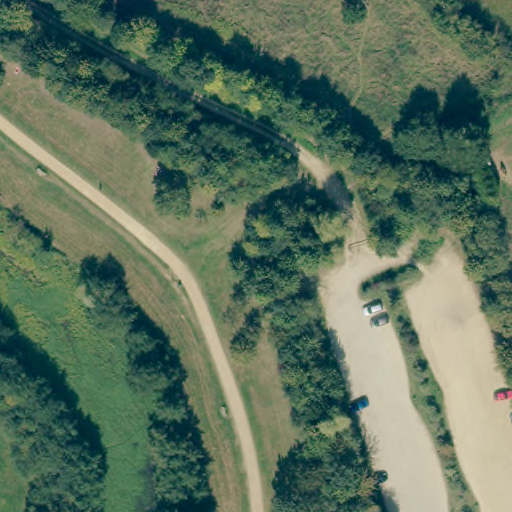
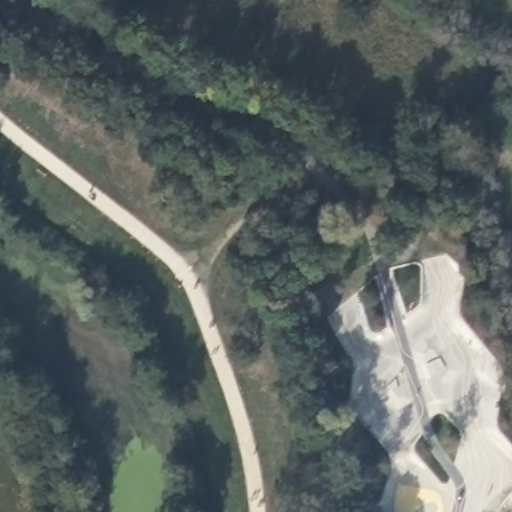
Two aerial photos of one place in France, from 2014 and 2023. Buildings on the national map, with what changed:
unchanged [(483,139),(495,164),(469,172),(459,151),(483,139)]

